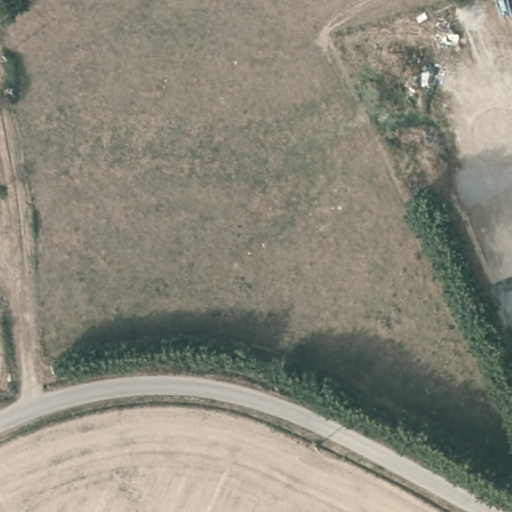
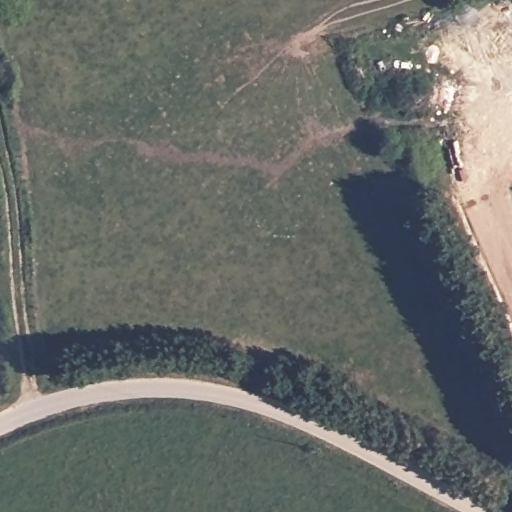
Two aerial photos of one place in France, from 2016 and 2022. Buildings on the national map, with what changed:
[]

